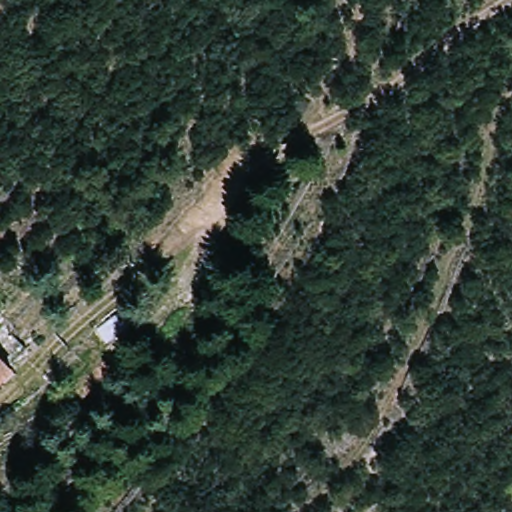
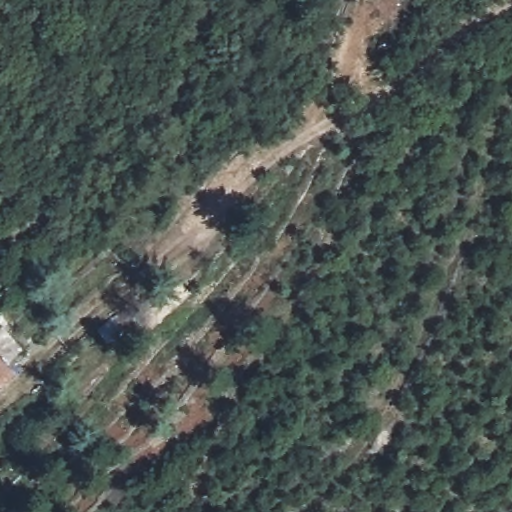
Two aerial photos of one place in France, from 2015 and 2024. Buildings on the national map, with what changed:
unchanged [(0,385),(0,356),(14,372),(0,385)]

